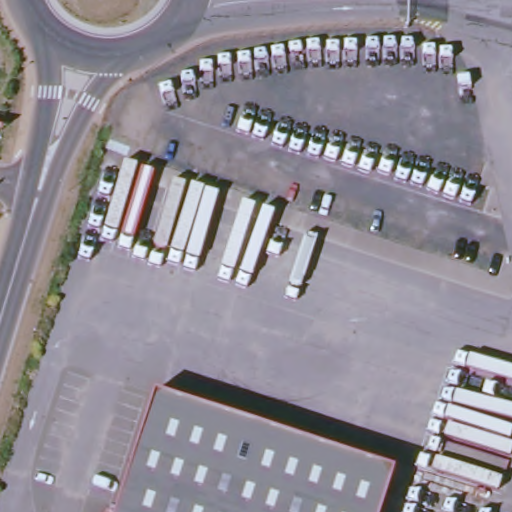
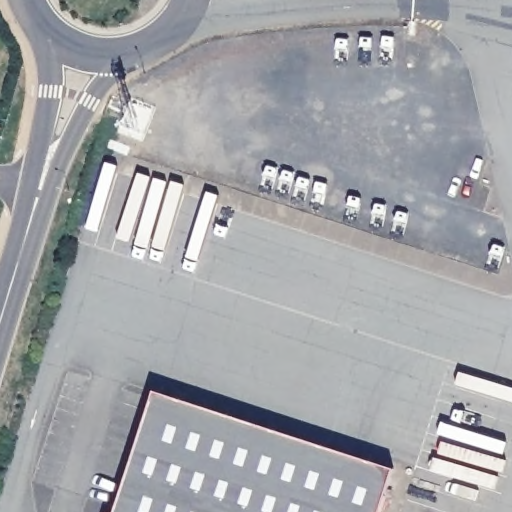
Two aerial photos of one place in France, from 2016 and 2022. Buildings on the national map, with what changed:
unchanged [(157,392),(299,437),(356,456),(397,469),(384,512),(118,512),(157,392)]

